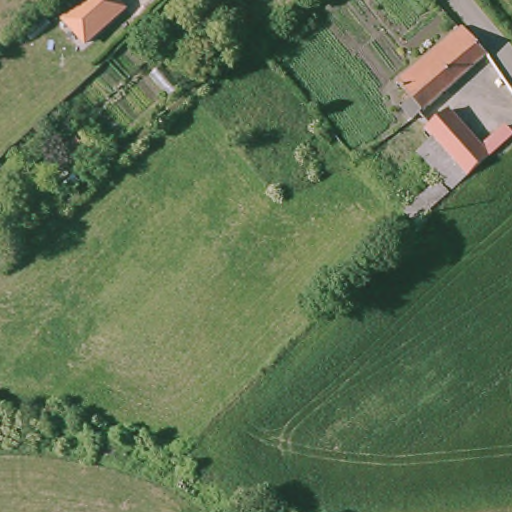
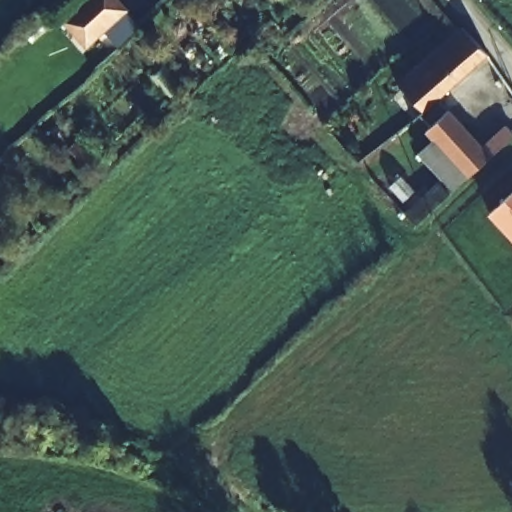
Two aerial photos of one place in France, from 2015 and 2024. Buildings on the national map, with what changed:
unchanged [(66,29),(70,25),(100,0),(110,0),(126,19),(91,48),(86,52),(66,29)]
unchanged [(462,28),(486,54),(452,84),(412,121),(400,109),(408,102),(397,87),(462,28)]
unchanged [(453,187),(418,149),(435,134),(429,126),(448,110),(482,145),(497,131),(505,140),(453,187)]
new [(512,193),(512,238),(490,214),(512,193)]

